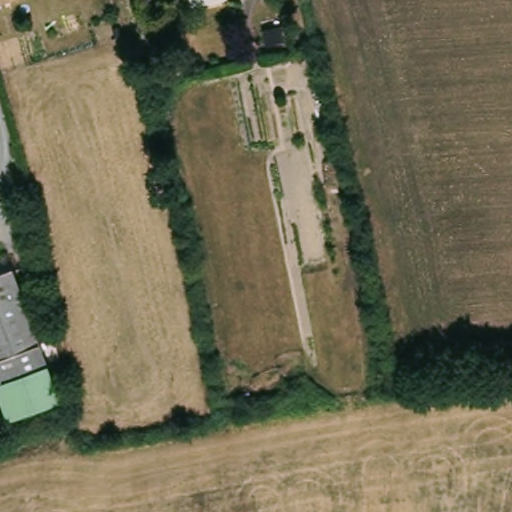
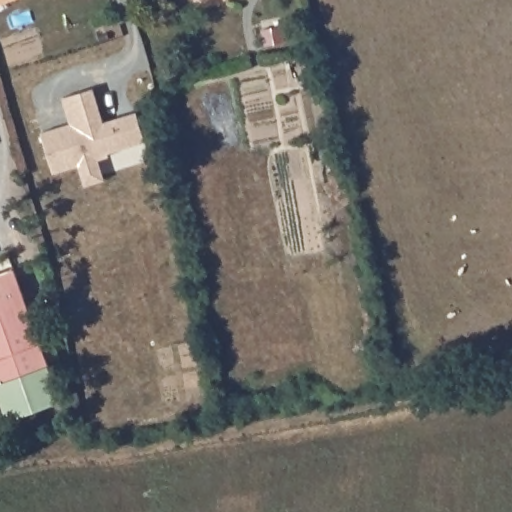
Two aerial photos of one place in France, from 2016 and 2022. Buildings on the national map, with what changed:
unchanged [(0,0),(11,0),(0,2),(0,0)]
unchanged [(191,0),(201,0),(191,2),(191,0)]
new [(85,185),(79,165),(53,173),(41,133),(71,124),(63,98),(93,88),(103,123),(105,122),(115,119),(137,112),(145,141),(108,153),(109,156),(98,159),(104,179),(85,185)]
unchanged [(52,407),(0,417),(0,278),(24,273),(52,407)]

